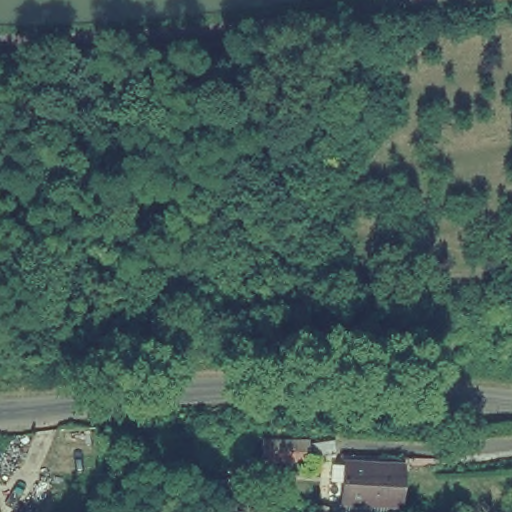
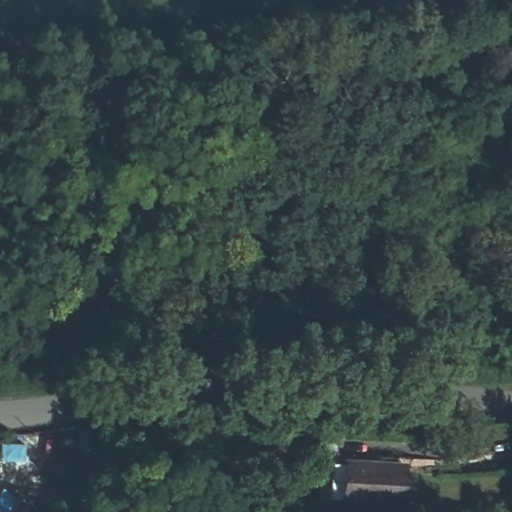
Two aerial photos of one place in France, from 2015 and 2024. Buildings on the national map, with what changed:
unchanged [(315,440),(311,470),(263,468),(267,438),(315,440)]
unchanged [(405,463),(402,503),(342,500),(345,461),(405,463)]

